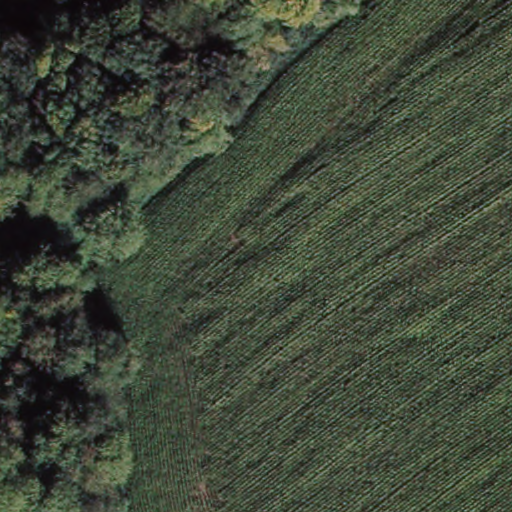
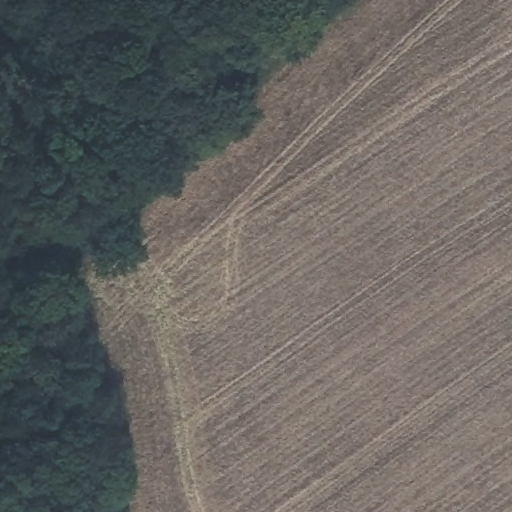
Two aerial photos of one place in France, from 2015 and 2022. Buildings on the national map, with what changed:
[]

